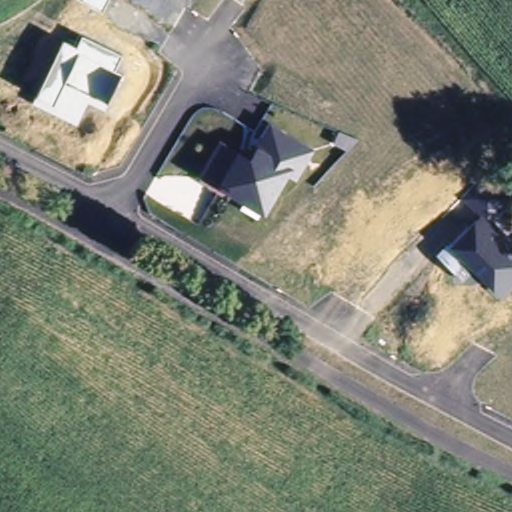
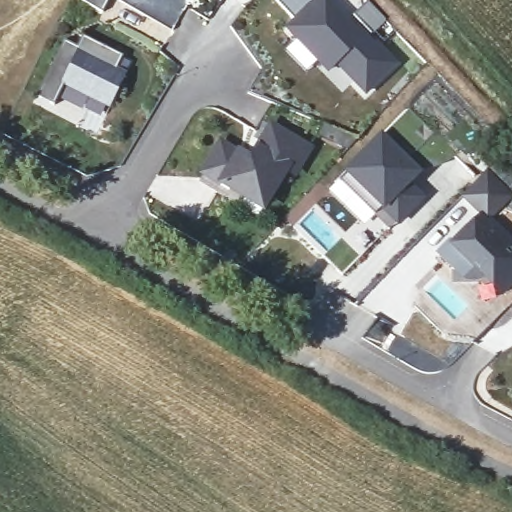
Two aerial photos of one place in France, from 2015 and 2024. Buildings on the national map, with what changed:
unchanged [(78,0),(104,0),(111,4),(101,21),(74,6),(78,0)]
new [(287,30),(316,0),(327,0),(376,45),(378,43),(397,67),(369,97),(336,65),(327,74),(316,61),(304,74),(282,52),(295,40),(287,30)]
unchanged [(78,44),(83,35),(121,56),(114,71),(123,75),(106,108),(64,88),(54,108),(33,98),(63,36),(78,44)]
unchanged [(314,147),(297,178),(288,175),(263,215),(198,175),(219,138),(252,151),(270,120),(314,147)]
new [(379,140),(418,173),(377,218),(339,181),(379,140)]
unchanged [(478,212),(460,196),(489,174),(511,198),(494,218),(512,238),(512,287),(503,297),(481,278),(462,278),(434,251),(478,212)]

